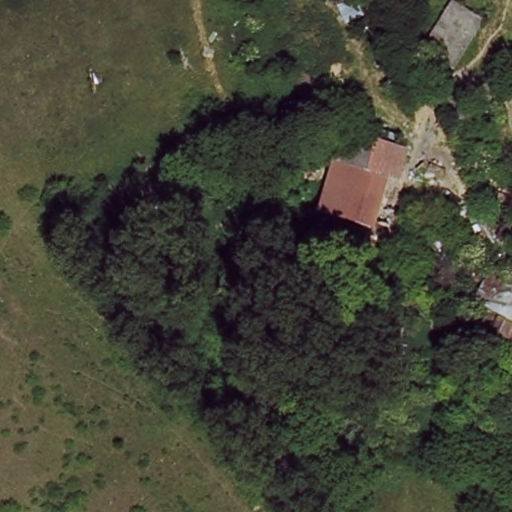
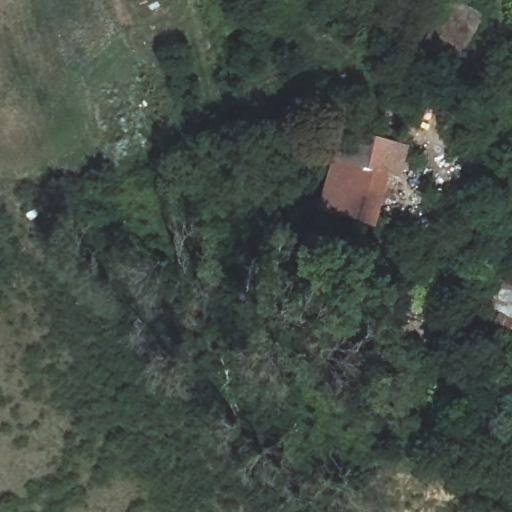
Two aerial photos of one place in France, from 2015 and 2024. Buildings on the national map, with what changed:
unchanged [(423,42),(454,0),(463,0),(487,16),(452,64),(423,42)]
unchanged [(400,201),(383,197),(374,222),(390,227),(376,273),(327,254),(330,245),(313,227),(341,135),(360,138),(410,155),(400,201)]
unchanged [(491,316),(471,299),(495,263),(512,271),(512,369),(475,351),(491,316)]
unchanged [(353,363),(362,328),(411,336),(398,376),(353,363)]

